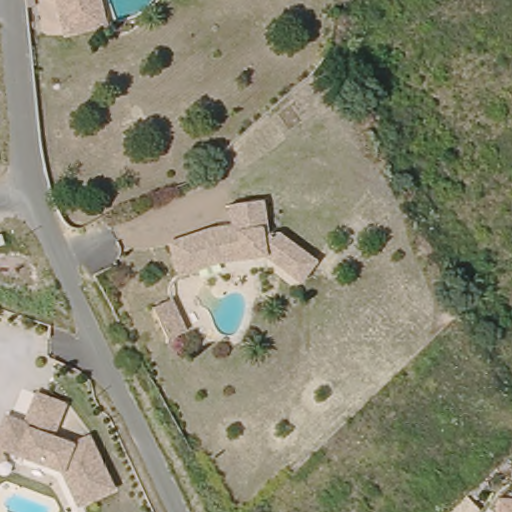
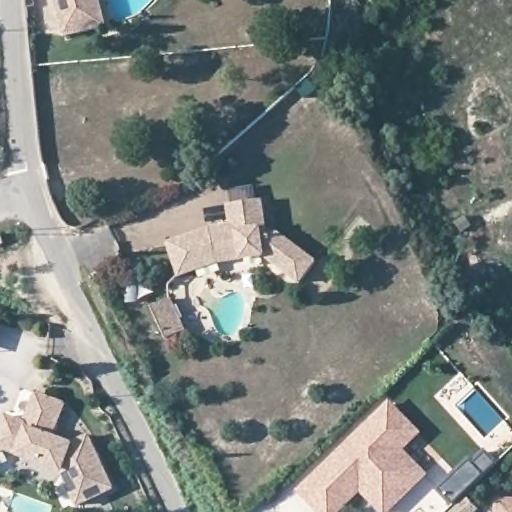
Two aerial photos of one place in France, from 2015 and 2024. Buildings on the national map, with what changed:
unchanged [(90,32),(48,36),(45,0),(88,0),(90,32)]
unchanged [(230,227),(228,205),(258,202),(263,235),(280,233),(314,265),(296,286),(264,260),(224,263),(179,277),(170,242),(203,232),(230,227)]
unchanged [(187,335),(168,340),(156,306),(176,301),(187,335)]
unchanged [(5,419),(12,421),(25,425),(34,394),(63,403),(53,437),(73,443),(90,435),(114,488),(78,504),(63,470),(5,453),(0,454),(0,439),(5,419)]
new [(378,512),(361,495),(343,512),(317,512),(298,493),(391,402),(423,435),(406,451),(429,476),(392,512),(378,512)]
new [(479,510),(476,512),(453,512),(467,499),(479,510)]
unchanged [(512,503),(512,512),(497,512),(498,502),(512,503)]

